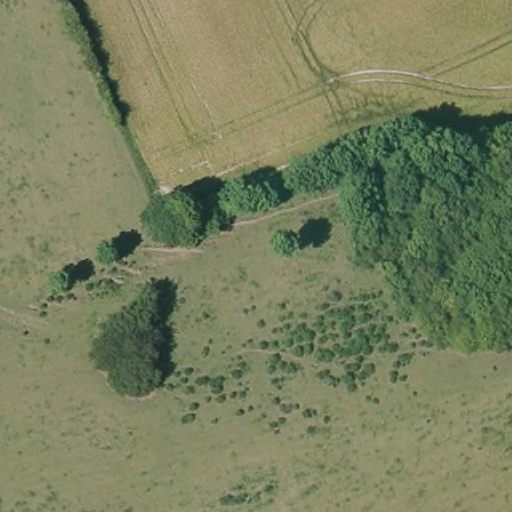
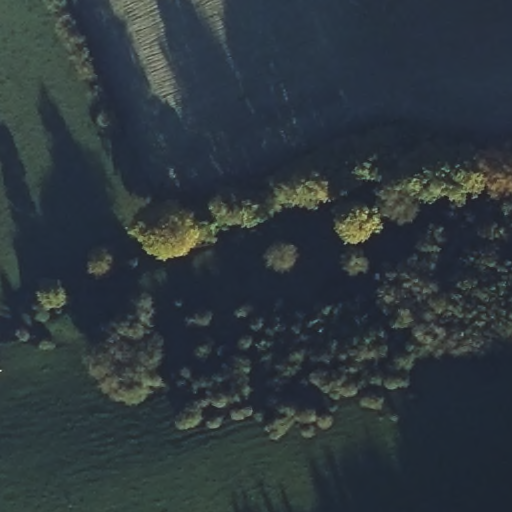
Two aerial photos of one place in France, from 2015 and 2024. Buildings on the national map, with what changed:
[]

